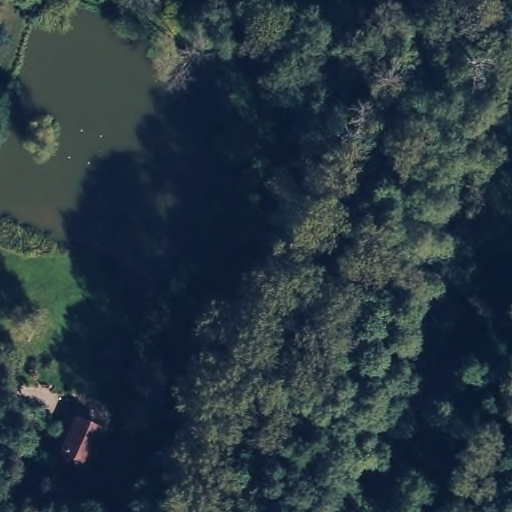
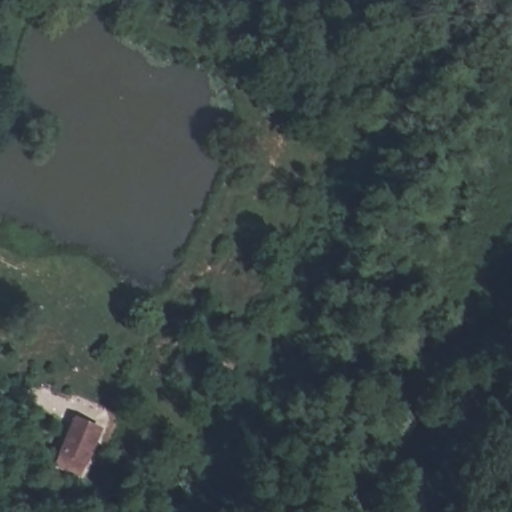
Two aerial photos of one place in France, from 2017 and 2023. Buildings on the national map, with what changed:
unchanged [(105,426),(85,476),(58,463),(77,415),(105,426)]

